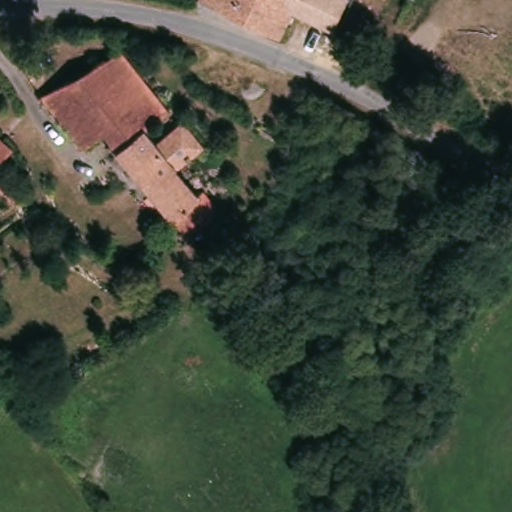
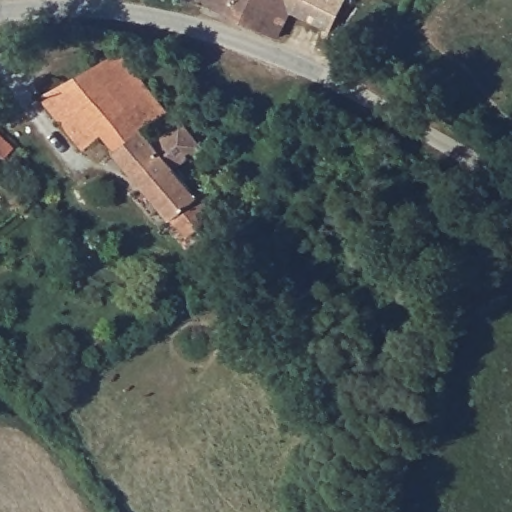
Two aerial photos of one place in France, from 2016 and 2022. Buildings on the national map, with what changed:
unchanged [(197,0),(299,0),(287,24),(279,40),(249,26),(196,1),(197,0)]
unchanged [(334,33),(293,13),(299,0),(348,0),(334,33)]
unchanged [(208,229),(205,230),(189,210),(167,227),(98,142),(81,156),(36,101),(116,54),(165,115),(142,133),(152,146),(180,125),(202,153),(174,174),(195,202),(200,198),(217,221),(208,229)]
unchanged [(11,154),(1,166),(0,167),(0,143),(11,154)]

